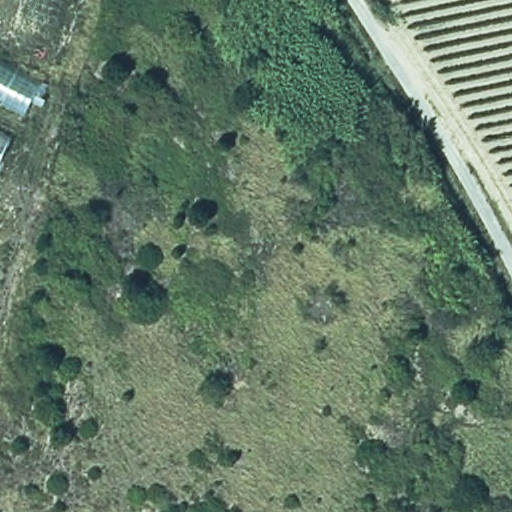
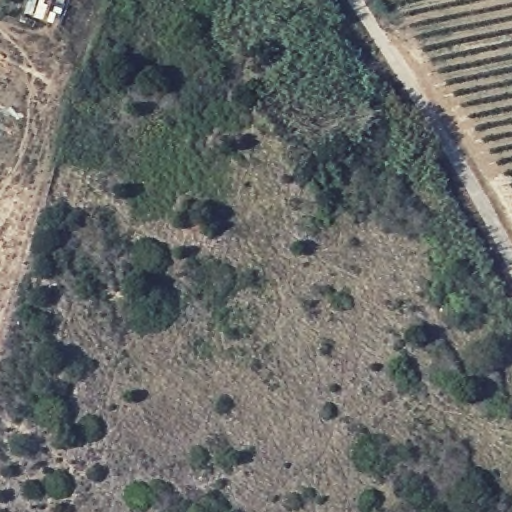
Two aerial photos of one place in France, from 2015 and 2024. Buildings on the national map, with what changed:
unchanged [(0,105),(0,62),(42,84),(23,117),(0,105)]
unchanged [(14,138),(0,164),(0,131),(14,138)]

